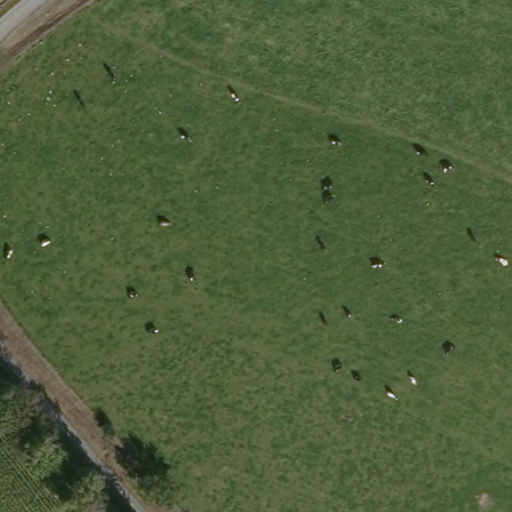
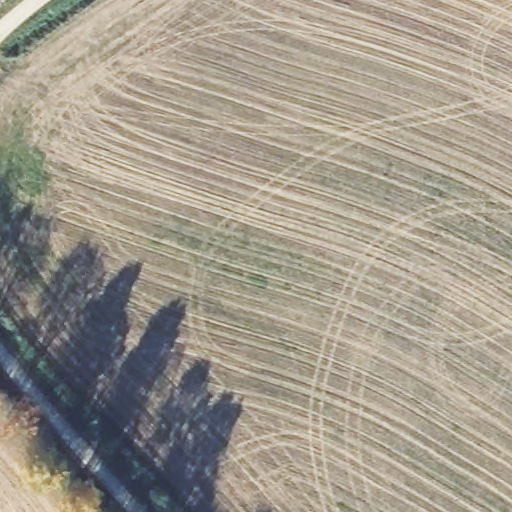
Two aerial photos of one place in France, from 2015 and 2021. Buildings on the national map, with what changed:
[]

